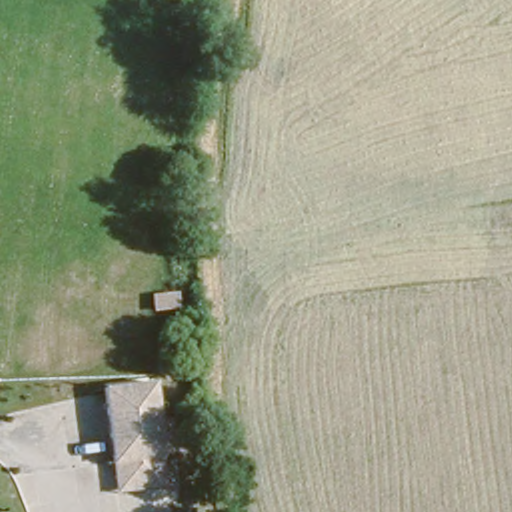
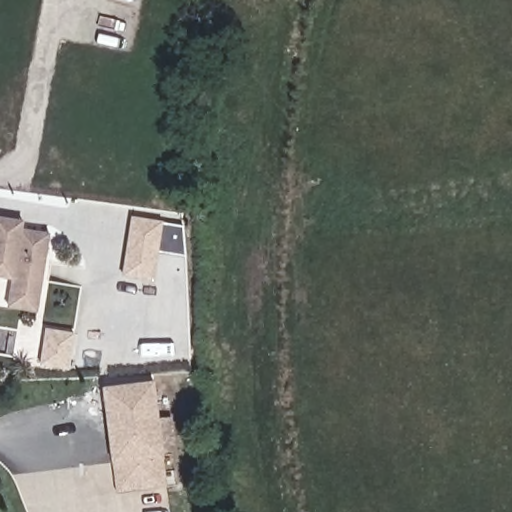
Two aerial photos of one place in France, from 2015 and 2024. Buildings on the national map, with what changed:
new [(163,226),(182,229),(183,257),(158,253),(153,282),(122,277),(132,216),(165,221),(163,226)]
new [(22,229),(51,233),(39,313),(8,308),(13,280),(0,278),(0,217),(23,221),(22,229)]
unchanged [(163,457),(113,463),(104,389),(153,382),(163,457)]
unchanged [(166,487),(117,493),(113,463),(163,457),(166,487)]

